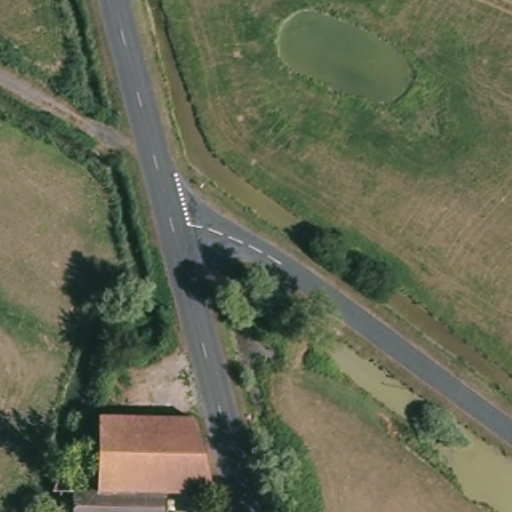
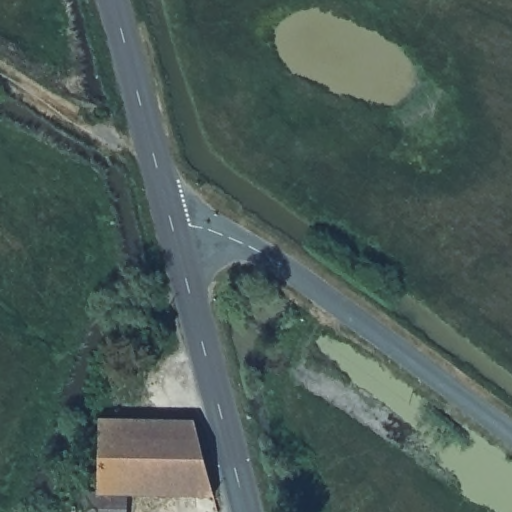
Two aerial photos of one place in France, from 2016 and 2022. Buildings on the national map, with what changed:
unchanged [(80,479),(81,498),(95,497),(95,423),(187,421),(206,497),(167,496),(167,512),(56,512),(57,497),(44,498),(50,478),(80,479)]

